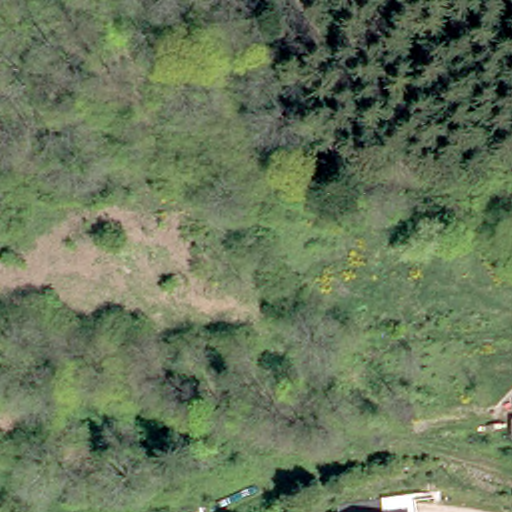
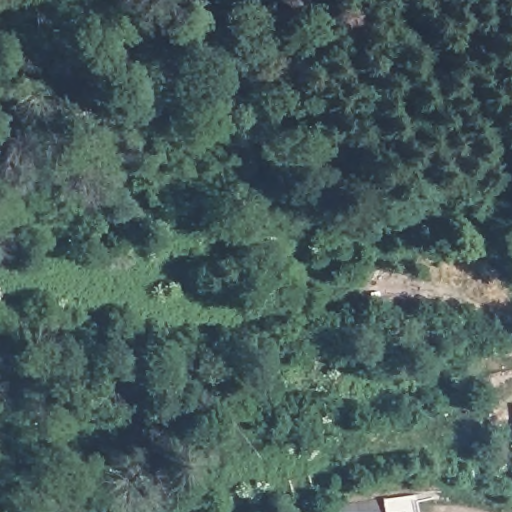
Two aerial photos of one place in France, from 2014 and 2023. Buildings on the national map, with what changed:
unchanged [(415,512),(364,512),(415,505),(415,512)]

